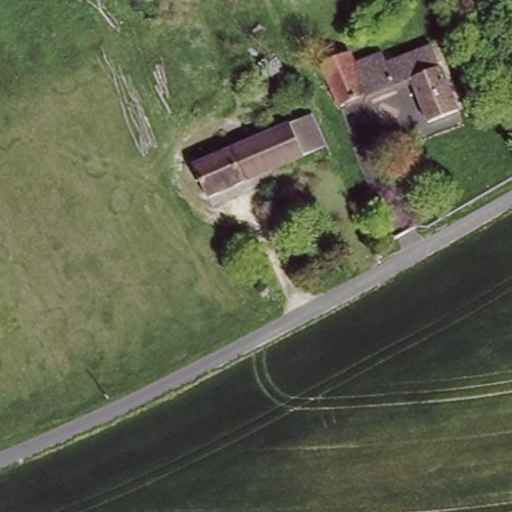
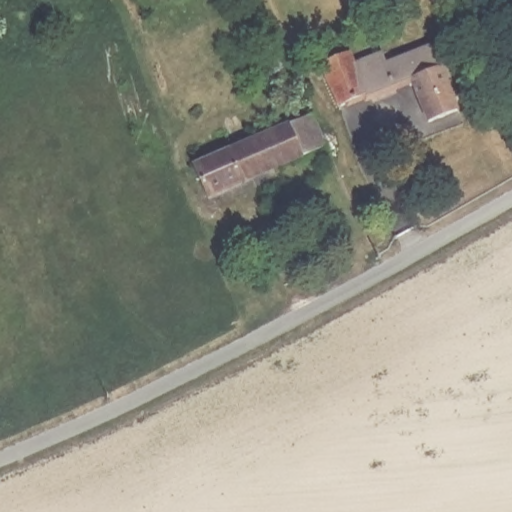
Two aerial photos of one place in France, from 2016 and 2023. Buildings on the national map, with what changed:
unchanged [(431,125),(415,85),(380,99),(373,98),(347,109),(328,61),(356,50),(361,63),(386,53),(390,64),(432,47),(458,114),(431,125)]
unchanged [(332,146),(207,198),(193,166),(317,114),(332,146)]

